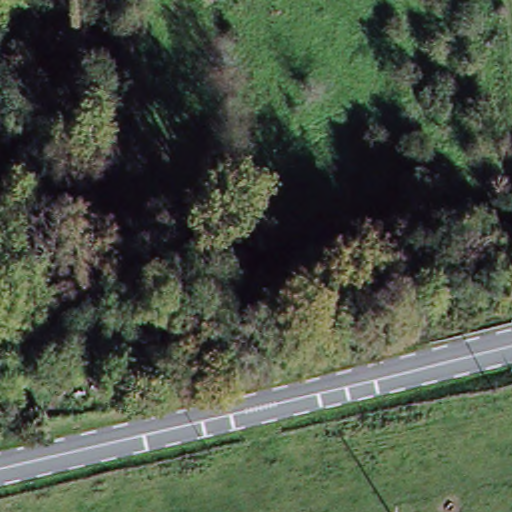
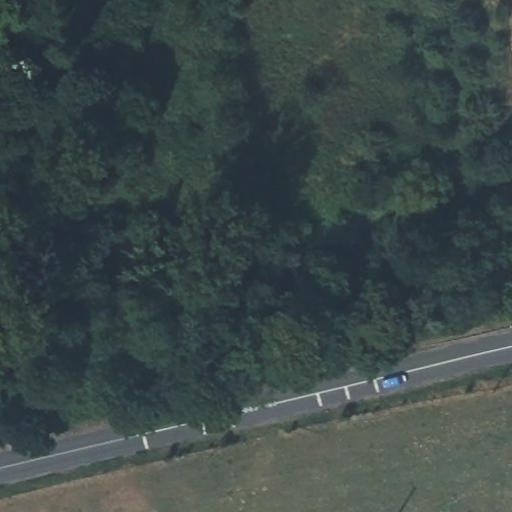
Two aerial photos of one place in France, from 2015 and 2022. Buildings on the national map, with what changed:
unchanged [(247,222),(277,221),(277,240),(248,241),(247,222)]

